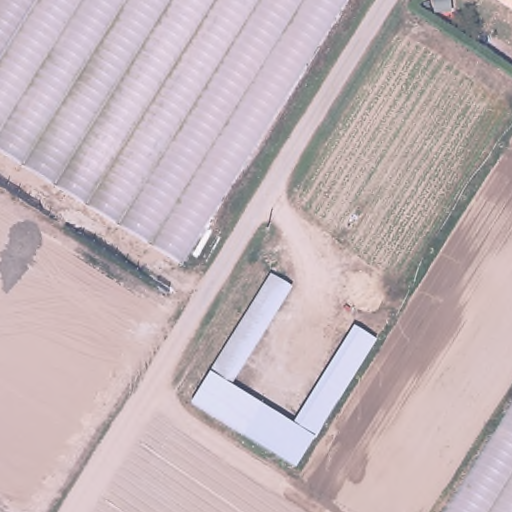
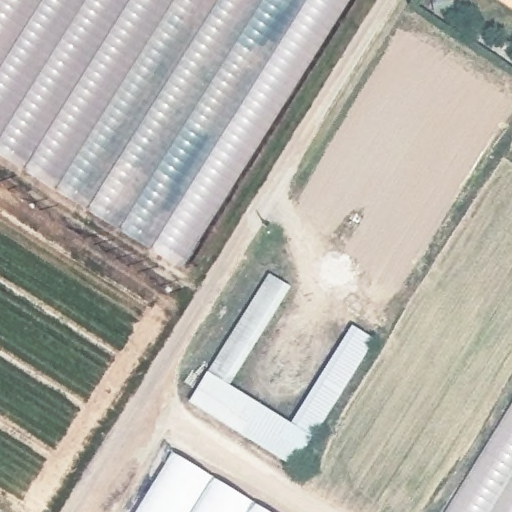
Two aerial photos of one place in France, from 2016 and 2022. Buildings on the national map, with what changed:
unchanged [(182,275),(0,161),(0,0),(351,0),(182,275)]
unchanged [(504,0),(512,0),(512,19),(498,10),(504,0)]
unchanged [(190,400),(268,272),(284,282),(223,380),(240,390),(221,420),(190,400)]
unchanged [(221,420),(240,390),(298,426),(359,330),(375,340),(296,466),(221,420)]
unchanged [(512,512),(454,512),(512,418),(512,512)]
new [(269,512),(139,512),(175,453),(269,512)]

